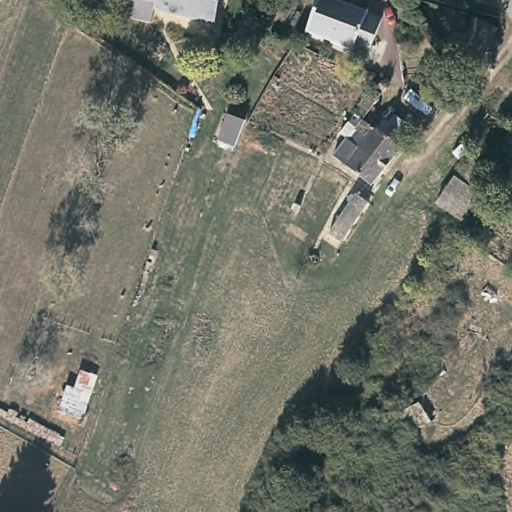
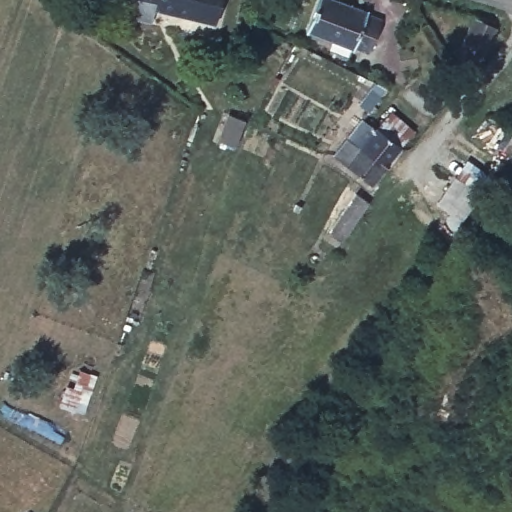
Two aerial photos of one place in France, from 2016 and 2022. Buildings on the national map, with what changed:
unchanged [(130,17),(134,2),(126,0),(220,0),(215,23),(153,8),(150,22),(130,17)]
unchanged [(365,11),(365,13),(380,18),(367,53),(351,46),(350,48),(305,31),(317,0),(336,0),(365,11)]
unchanged [(495,32),(474,75),(453,65),(473,22),(495,32)]
unchanged [(380,99),(367,116),(357,109),(370,92),(380,99)]
unchanged [(242,120),(232,147),(217,140),(226,114),(242,120)]
unchanged [(345,143),(338,138),(348,125),(355,131),(361,123),(375,134),(389,117),(411,135),(398,152),(382,172),(345,143)]
unchanged [(512,127),(512,148),(508,154),(497,147),(510,126),(512,127)]
unchanged [(370,188),(369,190),(331,160),(345,143),(382,172),(370,188)]
unchanged [(461,220),(435,205),(454,177),(468,155),(489,169),(475,190),(479,193),(461,220)]
unchanged [(366,202),(340,241),(328,233),(354,194),(366,202)]

